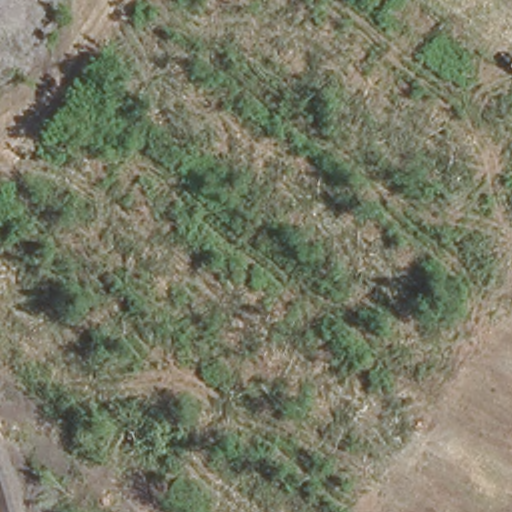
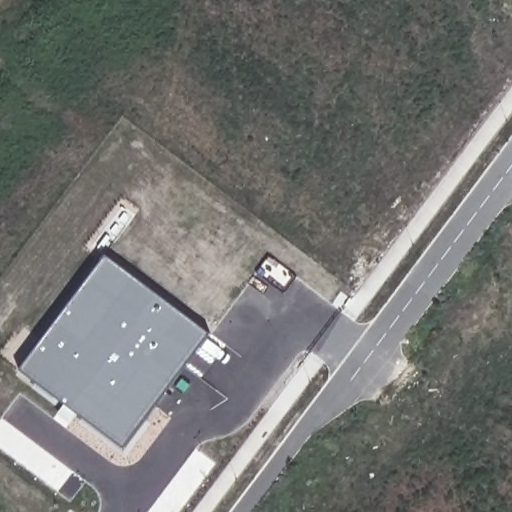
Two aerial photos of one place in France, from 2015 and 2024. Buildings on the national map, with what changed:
new [(122,448),(19,371),(105,254),(209,334),(122,448)]

